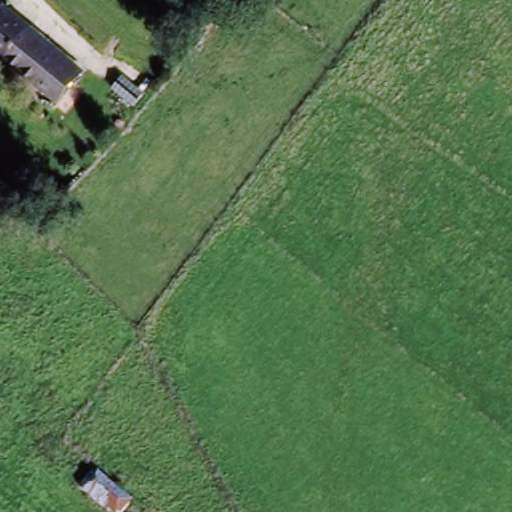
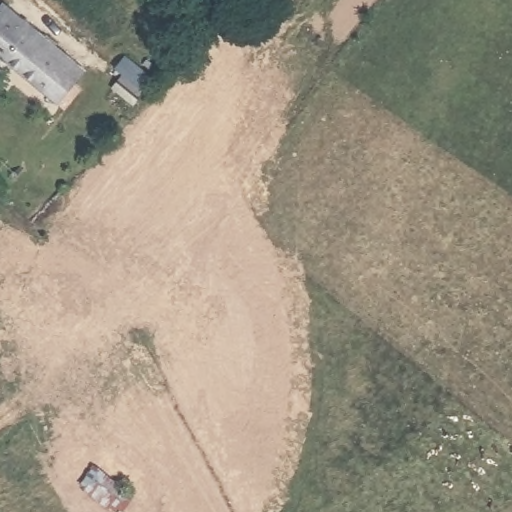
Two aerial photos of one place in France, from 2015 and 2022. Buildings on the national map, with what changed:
unchanged [(4,67),(0,64),(0,9),(2,6),(32,30),(81,70),(72,80),(52,106),(4,67)]
unchanged [(87,467),(122,498),(111,512),(104,512),(72,485),(87,467)]

